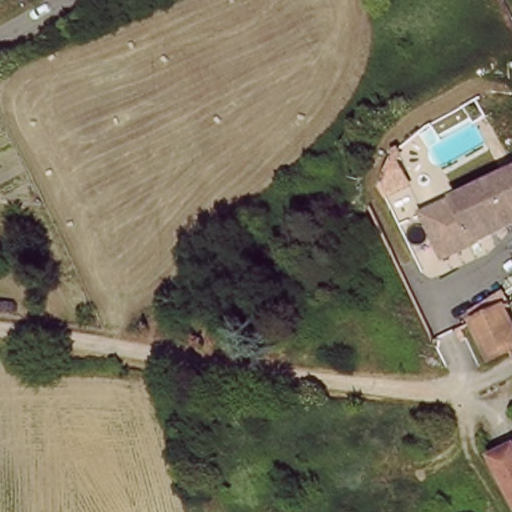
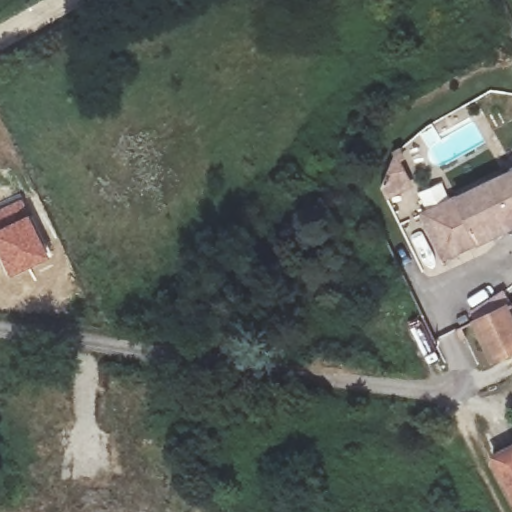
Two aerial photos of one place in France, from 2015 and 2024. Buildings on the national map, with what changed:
unchanged [(483,255),(448,271),(421,214),(512,173),(512,225),(476,242),(483,255)]
new [(23,196),(53,257),(9,278),(0,259),(0,207),(23,196)]
unchanged [(477,326),(508,312),(512,321),(512,357),(495,365),(477,326)]
unchanged [(496,457),(512,448),(512,491),(496,457)]

